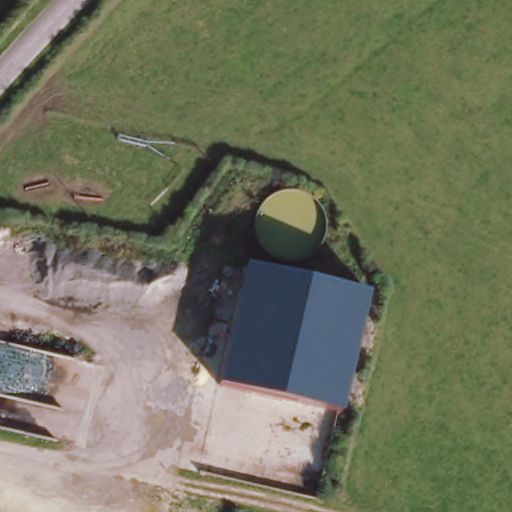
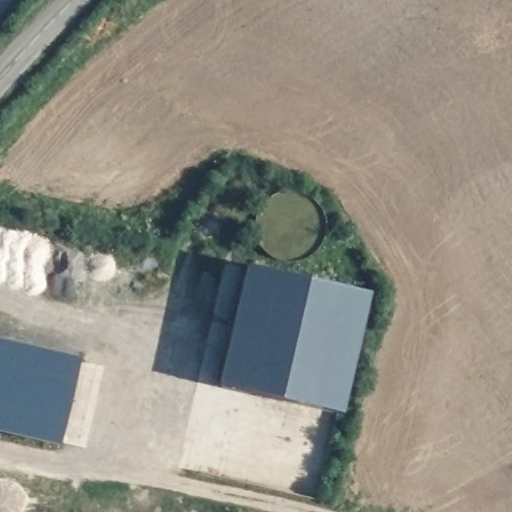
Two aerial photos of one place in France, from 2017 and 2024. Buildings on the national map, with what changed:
unchanged [(247,265),(367,293),(342,413),(219,386),(247,265)]
new [(60,444),(0,431),(0,337),(80,356),(60,444)]

